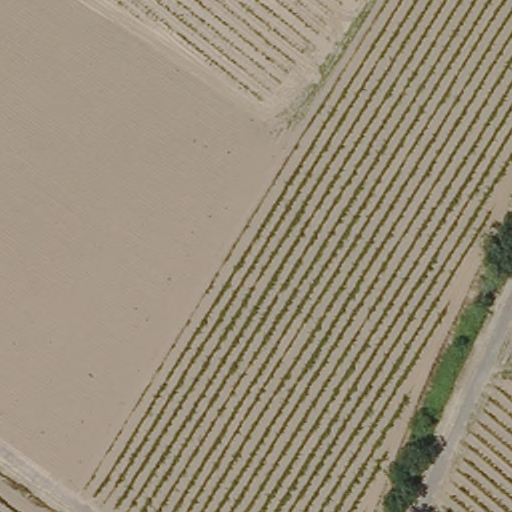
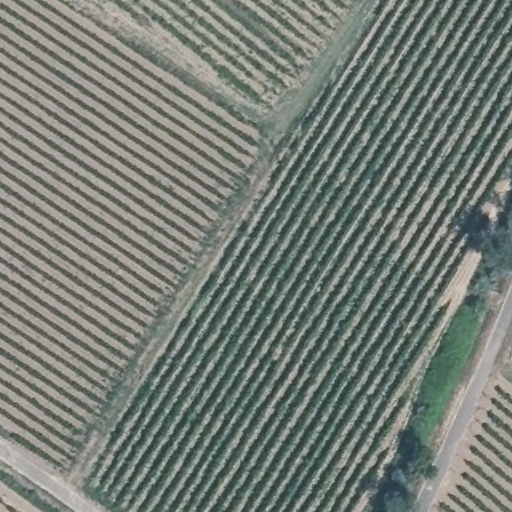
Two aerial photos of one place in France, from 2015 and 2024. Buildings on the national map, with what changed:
[]

